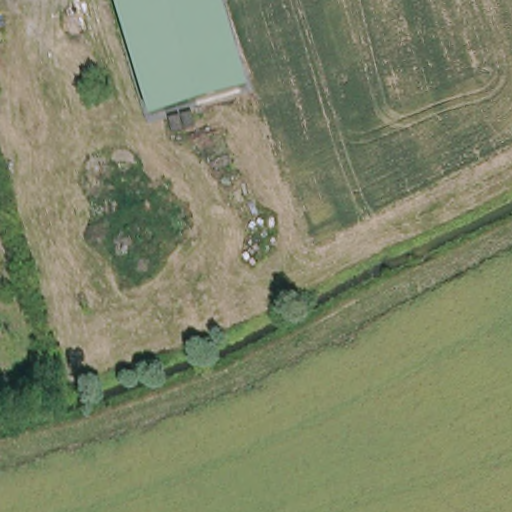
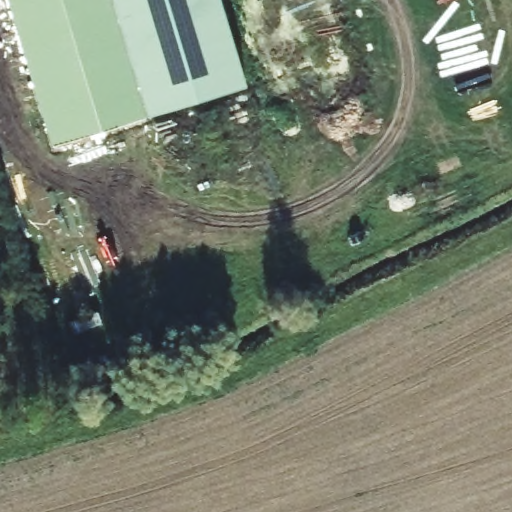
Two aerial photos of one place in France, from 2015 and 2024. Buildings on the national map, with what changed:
new [(9,0),(113,0),(147,116),(52,145),(9,0)]
unchanged [(147,116),(113,0),(220,0),(247,87),(147,116)]

